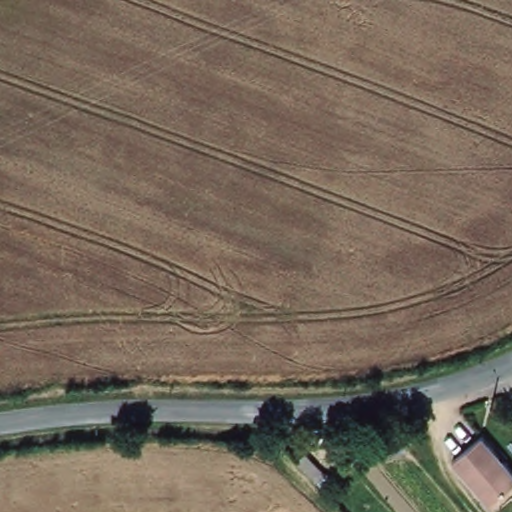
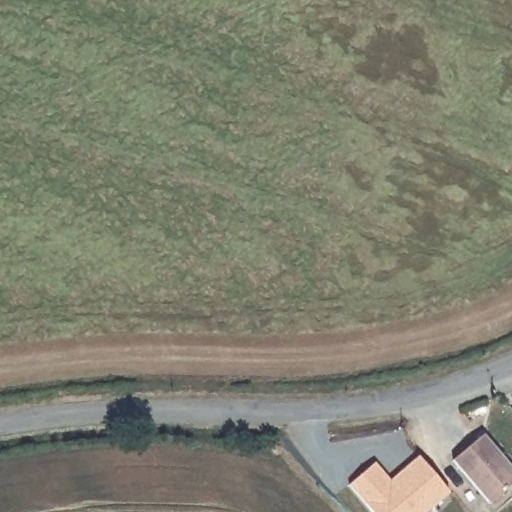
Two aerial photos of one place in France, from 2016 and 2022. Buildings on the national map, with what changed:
unchanged [(480,437),(512,474),(512,481),(487,501),(452,461),(480,437)]
demolished [(308,451),(322,466),(314,473),(300,458),(308,451)]
new [(447,492),(422,512),(371,512),(348,485),(374,461),(390,480),(417,456),(447,492)]

